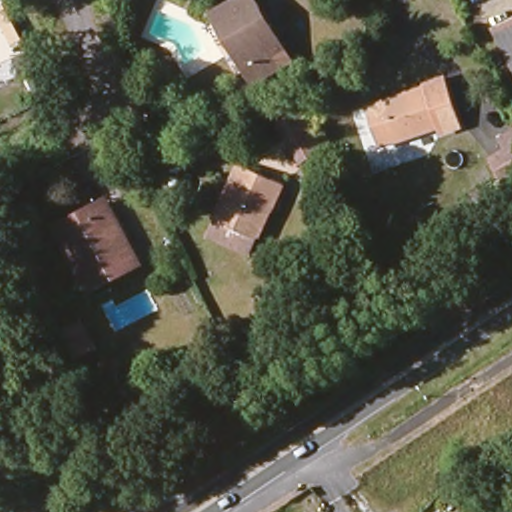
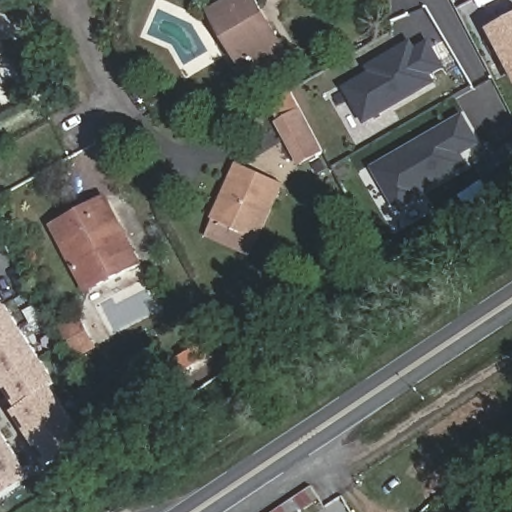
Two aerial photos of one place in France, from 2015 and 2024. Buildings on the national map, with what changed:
unchanged [(233,0),(258,0),(291,59),(252,81),(213,11),(233,0)]
unchanged [(512,25),(512,76),(492,36),(512,25)]
new [(344,88),(370,72),(367,67),(413,40),(418,47),(431,41),(448,68),(435,76),(439,85),(366,126),(344,88)]
demolished [(370,107),(426,89),(438,125),(382,144),(370,107)]
unchanged [(306,179),(283,137),(285,136),(275,116),(298,103),(331,166),(306,179)]
new [(464,114),(482,145),(464,156),(473,170),(397,214),(372,168),(464,114)]
demolished [(491,160),(512,146),(512,183),(507,187),(491,160)]
unchanged [(207,235),(215,217),(240,166),(283,185),(258,239),(250,256),(207,235)]
new [(493,194),(468,209),(460,196),(485,181),(493,194)]
unchanged [(86,290),(62,243),(53,226),(106,198),(109,206),(139,262),(86,290)]
new [(56,383),(51,387),(20,407),(0,376),(0,306),(3,303),(56,383)]
new [(51,387),(86,441),(49,464),(14,411),(20,407),(51,387)]
new [(30,477),(0,496),(0,430),(23,467),(30,462),(36,473),(30,477)]
demolished [(20,480),(10,465),(36,447),(47,468),(46,472),(44,474),(41,476),(37,476),(34,475),(32,472),(20,480)]
new [(49,464),(43,469),(35,457),(41,452),(49,464)]

